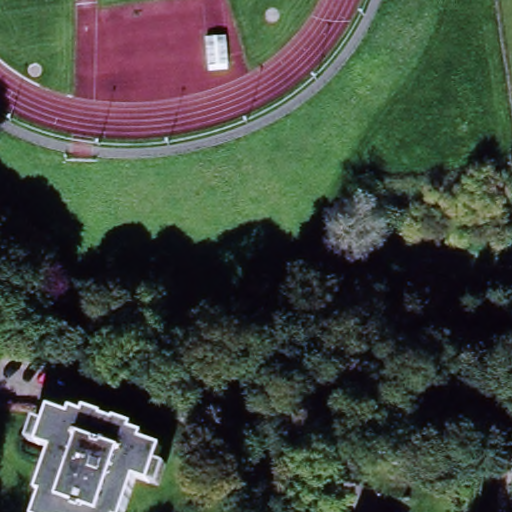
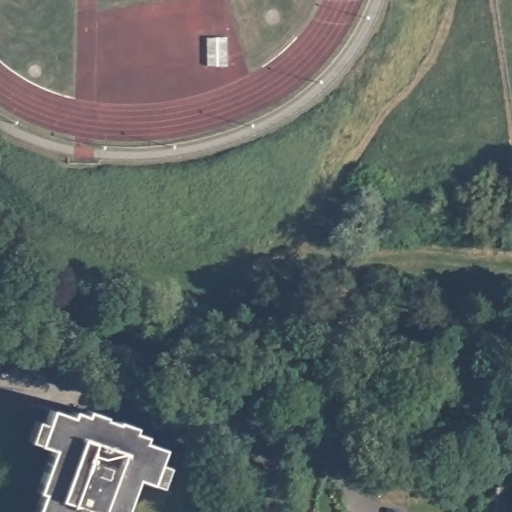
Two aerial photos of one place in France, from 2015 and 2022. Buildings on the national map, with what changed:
unchanged [(150,483),(137,477),(124,512),(32,512),(40,491),(35,490),(50,448),(37,443),(51,407),(71,415),(74,407),(87,412),(90,406),(137,423),(135,430),(145,433),(144,439),(164,446),(150,483)]

